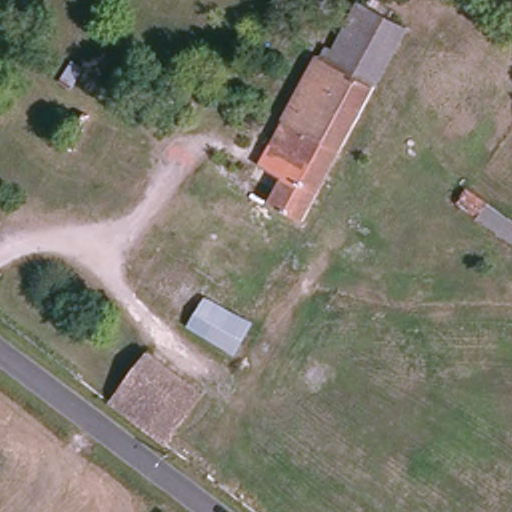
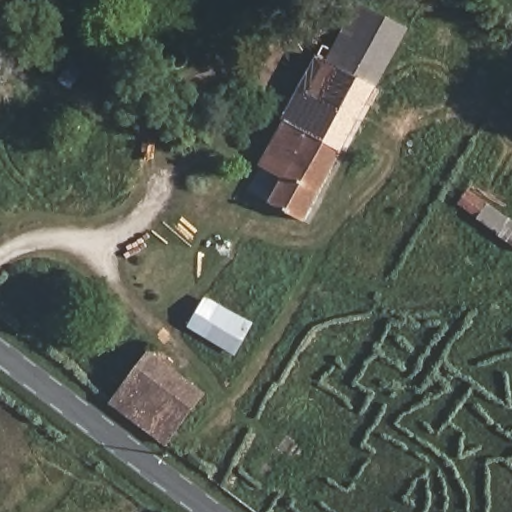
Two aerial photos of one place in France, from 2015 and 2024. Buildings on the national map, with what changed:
unchanged [(298,236),(265,219),(273,202),(250,175),(319,56),(328,59),(360,0),(408,29),(298,236)]
unchanged [(459,204),(469,189),(512,219),(512,244),(459,204)]
unchanged [(251,323),(233,355),(185,327),(204,296),(251,323)]
unchanged [(109,398),(146,347),(205,392),(170,444),(109,398)]

